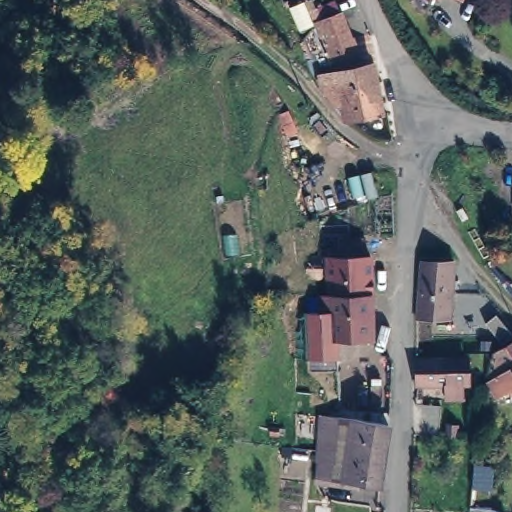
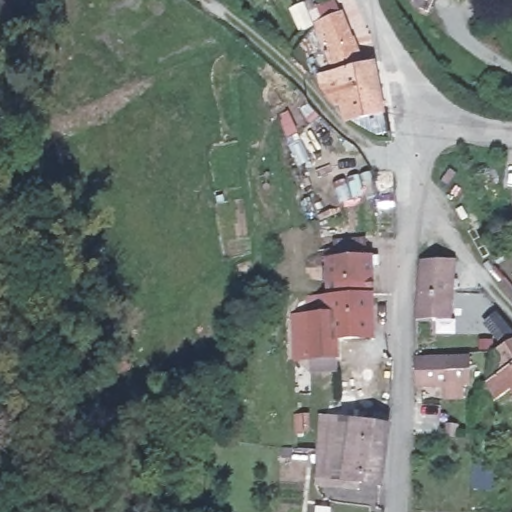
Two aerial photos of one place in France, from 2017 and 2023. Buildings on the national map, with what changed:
unchanged [(384,109),(347,115),(337,67),(341,66),(337,48),(356,42),(361,61),(374,59),(384,109)]
unchanged [(470,216),(463,220),(457,211),(464,207),(470,216)]
unchanged [(329,277),(306,277),(305,257),(317,257),(316,250),(335,250),(335,241),(362,240),(363,257),(367,257),(369,296),(330,296),(329,277)]
unchanged [(451,318),(420,317),(425,262),(454,263),(451,318)]
unchanged [(330,296),(369,296),(370,338),(334,338),(332,356),(293,356),(293,311),(312,312),(313,297),(330,296)]
unchanged [(502,338),(504,342),(500,345),(497,341),(502,338)]
unchanged [(497,397),(490,385),(486,386),(496,353),(512,342),(512,390),(497,397)]
unchanged [(470,355),(469,380),(465,380),(464,394),(447,395),(447,381),(421,381),(419,354),(470,355)]
unchanged [(457,426),(457,436),(447,434),(448,425),(457,426)]
unchanged [(317,459),(318,432),(335,432),(352,436),(385,441),(380,477),(359,475),(357,481),(346,480),(314,476),(317,459)]
unchanged [(477,467),(494,468),(492,492),(474,491),(477,467)]

